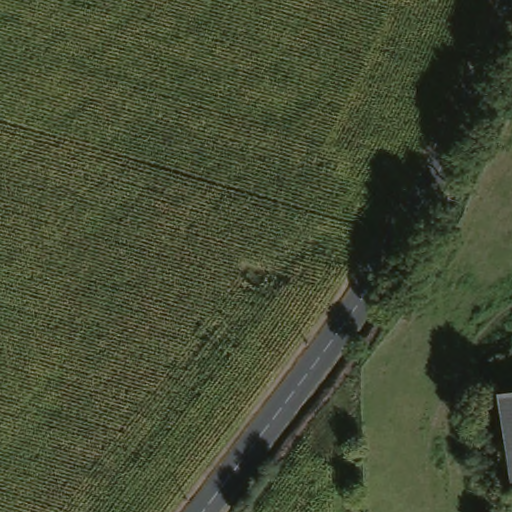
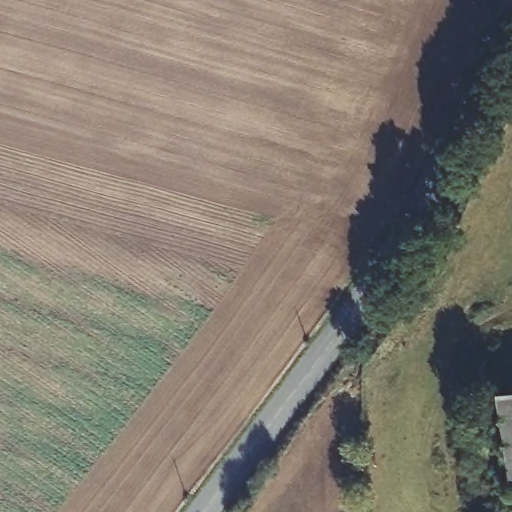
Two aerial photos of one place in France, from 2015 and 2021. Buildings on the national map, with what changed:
unchanged [(509,471),(498,395),(512,393),(512,493),(509,471)]

